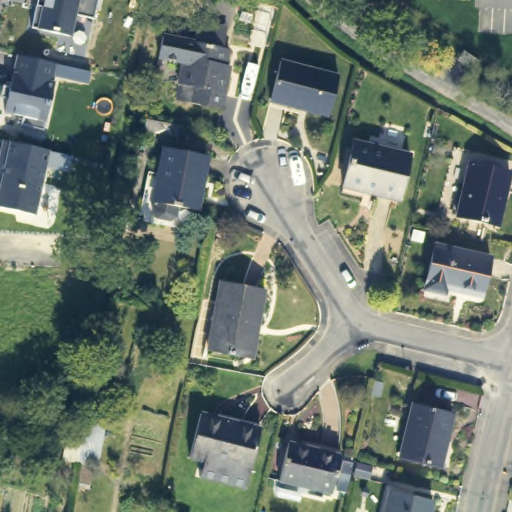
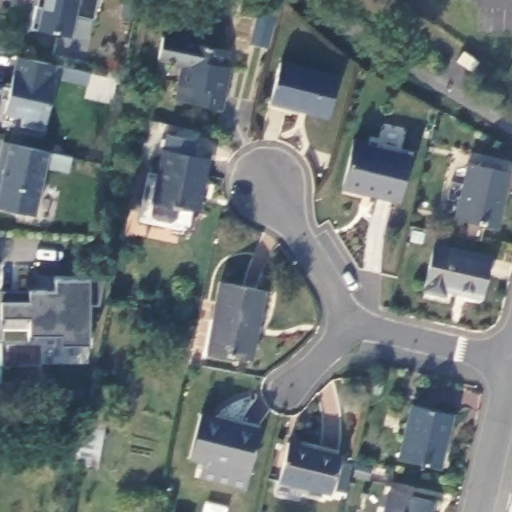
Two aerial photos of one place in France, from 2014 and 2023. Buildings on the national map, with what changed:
unchanged [(76,16),(71,37),(31,29),(35,6),(41,7),(43,0),(97,0),(92,20),(76,16)]
unchanged [(196,23),(214,27),(227,30),(222,50),(227,50),(222,75),(226,75),(219,109),(175,100),(178,83),(177,83),(180,66),(182,64),(181,62),(157,57),(162,35),(192,42),(196,23)]
unchanged [(88,86),(53,79),(53,84),(55,85),(45,131),(20,126),(22,118),(3,114),(15,56),(90,72),(88,86)]
unchanged [(276,64),(334,79),(325,119),(268,104),(276,64)]
unchanged [(351,140),(407,155),(395,200),(340,185),(351,140)]
unchanged [(69,174),(47,169),(37,216),(0,209),(0,146),(1,141),(72,157),(69,174)]
unchanged [(168,219),(153,216),(149,210),(151,200),(162,147),(204,156),(193,209),(176,205),(174,215),(168,219)]
unchanged [(467,162),(508,172),(495,225),(455,215),(467,162)]
unchanged [(432,245),(487,258),(478,297),(442,288),(441,293),(421,288),(432,245)]
new [(54,290),(54,280),(103,280),(97,304),(88,304),(88,345),(59,345),(58,336),(29,336),(29,343),(0,343),(0,290),(54,290)]
unchanged [(222,285),(266,292),(260,327),(253,326),(248,360),(211,353),(222,285)]
unchanged [(414,401),(455,411),(442,465),(401,456),(414,401)]
unchanged [(212,462),(189,455),(199,411),(258,425),(245,486),(208,478),(212,462)]
unchanged [(288,441),(341,452),(332,490),(280,478),(288,441)]
unchanged [(387,490),(428,498),(425,512),(383,512),(387,490)]

